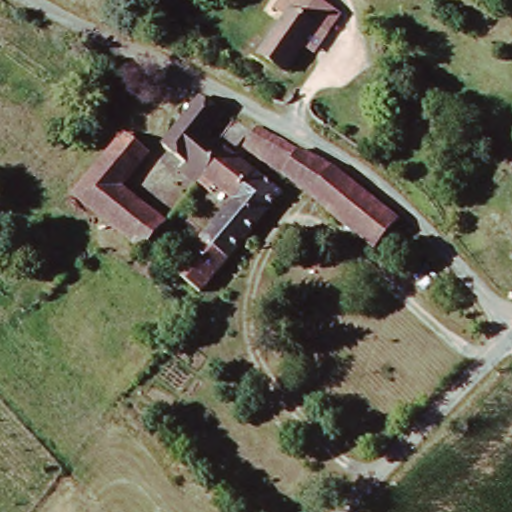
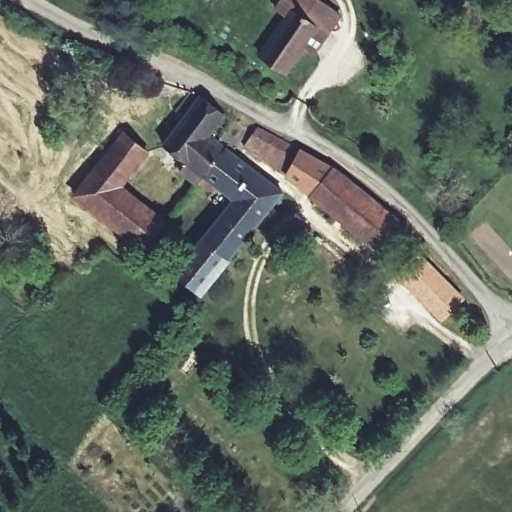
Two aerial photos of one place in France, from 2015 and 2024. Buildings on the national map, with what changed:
unchanged [(319,7),(327,13),(338,20),(326,37),(315,30),(280,80),(254,62),(289,14),(278,5),(281,0),(325,0),(323,4),(319,7)]
unchanged [(213,135),(228,146),(201,180),(159,147),(195,103),(223,116),(213,135)]
unchanged [(256,130),(332,170),(397,225),(374,250),(245,149),(256,130)]
unchanged [(142,256),(71,200),(123,134),(148,154),(120,190),(151,214),(161,201),(176,213),(142,256)]
unchanged [(284,191),(201,295),(173,273),(230,202),(201,180),(228,146),(284,191)]
new [(406,288),(431,264),(465,299),(441,323),(406,288)]

